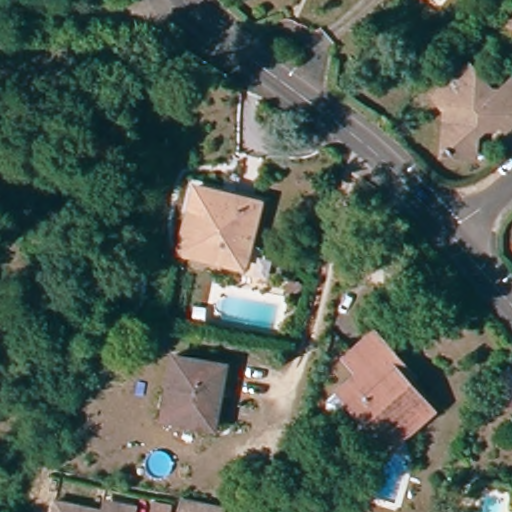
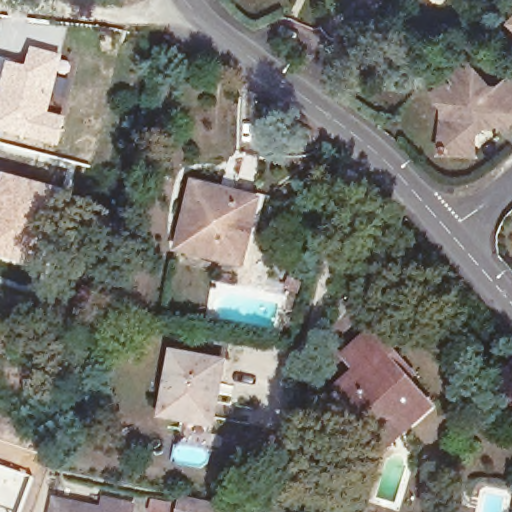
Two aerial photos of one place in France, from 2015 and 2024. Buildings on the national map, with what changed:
new [(25,65),(30,47),(63,56),(49,112),(67,118),(57,149),(0,133),(0,58),(25,65)]
unchanged [(479,121),(477,145),(447,144),(450,98),(440,86),(452,76),(458,81),(464,75),(460,69),(474,57),(492,76),(500,77),(507,75),(512,70),(512,117),(512,118),(505,111),(495,119),(486,116),(479,121)]
new [(4,174),(21,179),(17,198),(49,206),(50,201),(58,204),(48,234),(44,233),(34,268),(0,259),(0,183),(4,174)]
unchanged [(246,259),(182,245),(188,215),(192,193),(195,179),(215,183),(259,194),(246,259)]
unchanged [(389,439),(371,415),(360,401),(341,416),(335,415),(326,403),(326,397),(360,371),(348,355),(379,330),(390,343),(412,372),(405,377),(422,399),(429,408),(389,439)]
unchanged [(180,355),(229,364),(226,381),(220,381),(212,421),(170,414),(180,355)]
unchanged [(234,512),(181,512),(186,490),(203,494),(236,501),(234,512)]
unchanged [(58,497),(105,508),(108,498),(137,505),(135,512),(55,512),(58,497)]

